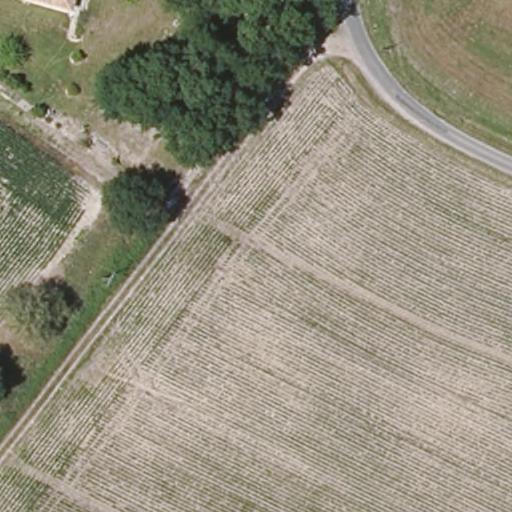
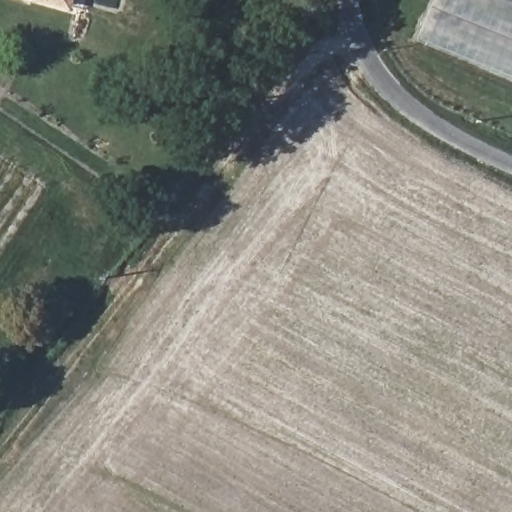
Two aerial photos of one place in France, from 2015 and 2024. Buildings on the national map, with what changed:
unchanged [(74,18),(10,0),(78,0),(74,18)]
new [(512,78),(414,38),(431,0),(512,0),(512,78)]

